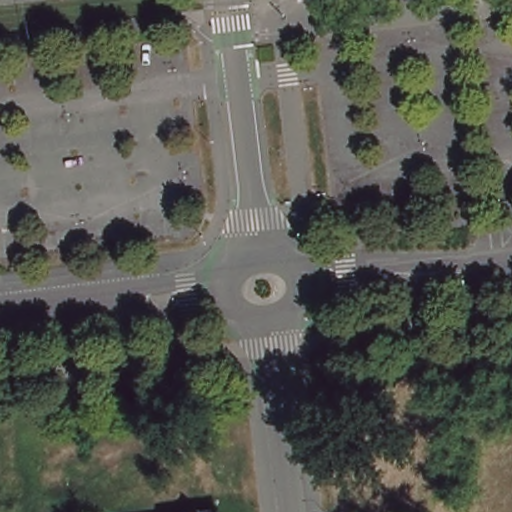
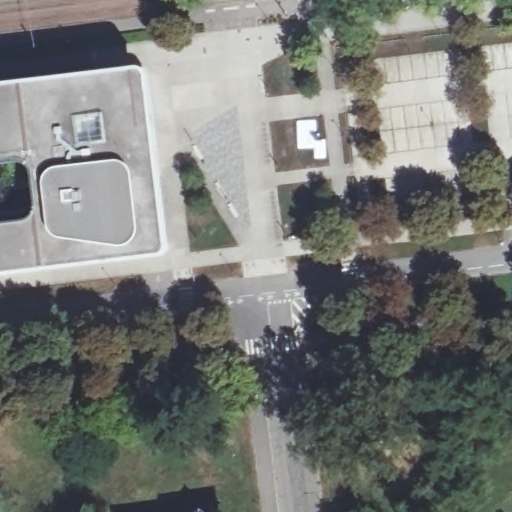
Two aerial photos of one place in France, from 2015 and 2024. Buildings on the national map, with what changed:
new [(137,67),(145,69),(147,72),(169,249),(167,254),(164,257),(0,275),(0,223),(27,220),(31,218),(35,212),(37,206),(32,169),(29,164),(23,161),(17,161),(0,163),(0,84),(137,67)]
unchanged [(214,511),(214,512),(208,512),(214,511)]

